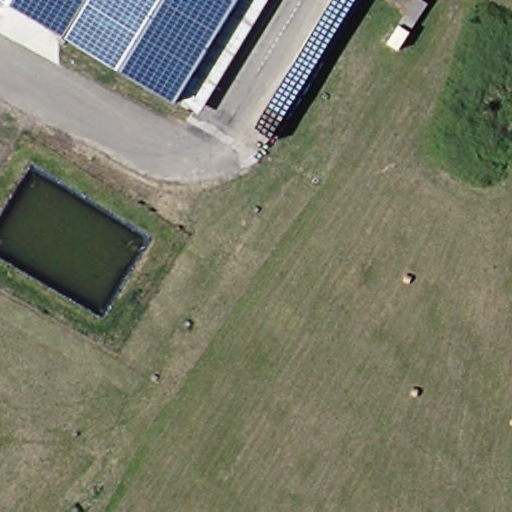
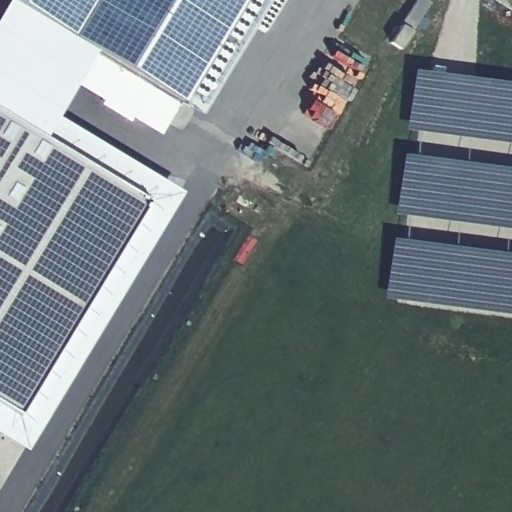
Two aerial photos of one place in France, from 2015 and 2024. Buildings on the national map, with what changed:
unchanged [(1,0),(231,0),(168,102),(1,0)]
unchanged [(168,102),(231,0),(262,0),(191,117),(168,102)]
new [(417,0),(423,0),(429,4),(401,49),(391,42),(417,0)]
new [(15,415),(143,201),(0,113),(0,9),(4,2),(168,102),(174,106),(157,136),(73,86),(53,117),(181,193),(23,451),(0,437),(0,405),(15,415)]
new [(512,144),(406,130),(414,71),(512,83),(512,144)]
new [(143,201),(15,415),(0,405),(0,113),(143,201)]
new [(403,156),(512,169),(512,229),(395,215),(403,156)]
new [(512,315),(384,298),(392,240),(512,254),(512,315)]

